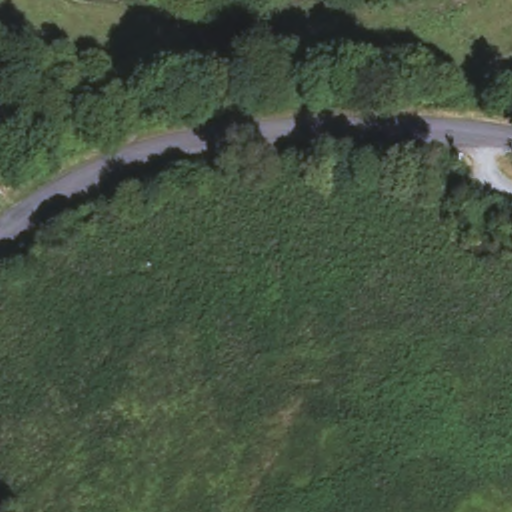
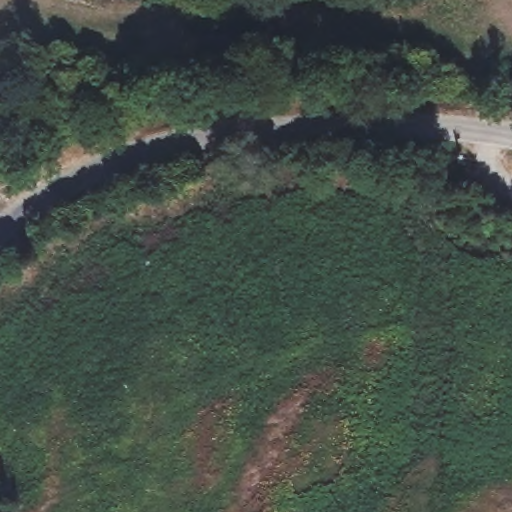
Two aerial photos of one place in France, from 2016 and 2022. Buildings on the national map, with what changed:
[]

